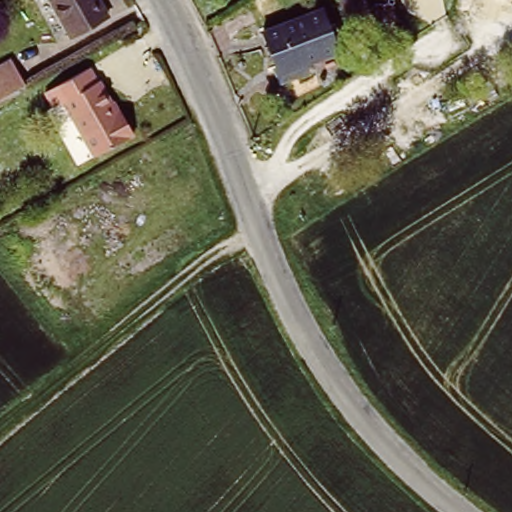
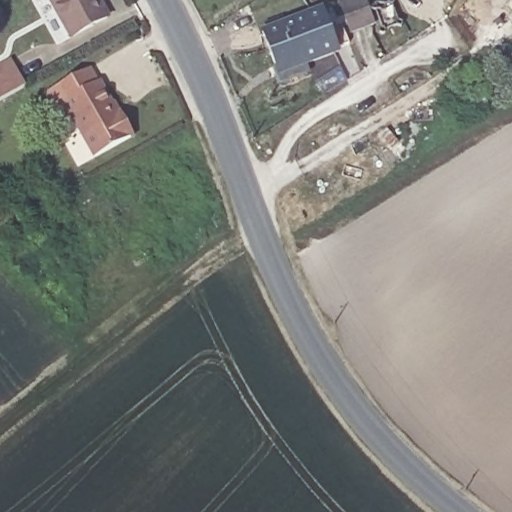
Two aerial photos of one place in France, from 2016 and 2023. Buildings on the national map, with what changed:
unchanged [(109,15),(77,33),(59,0),(100,0),(109,15)]
unchanged [(373,4),(385,0),(394,0),(404,22),(385,29),(390,31),(364,43),(344,0),(370,0),(373,4)]
unchanged [(326,10),(340,51),(283,71),(269,30),(326,10)]
unchanged [(4,59),(17,85),(0,94),(0,61),(4,59)]
unchanged [(55,85),(97,61),(117,105),(123,98),(140,132),(96,156),(55,85)]

